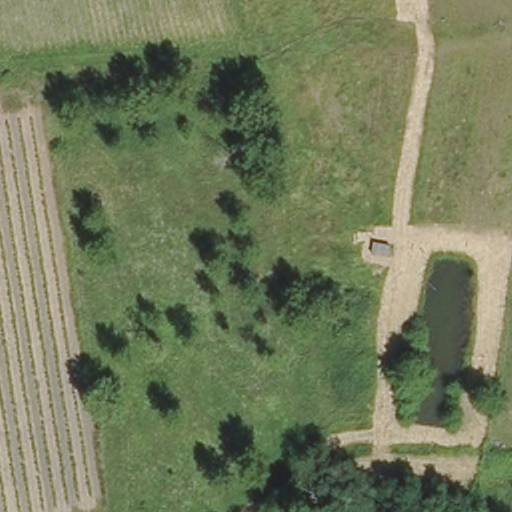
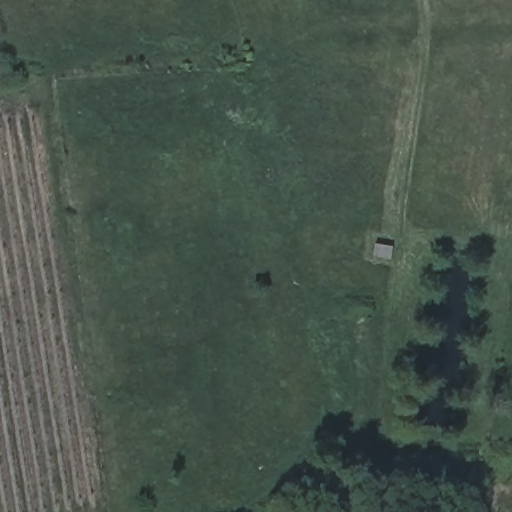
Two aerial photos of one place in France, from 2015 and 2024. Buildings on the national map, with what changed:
unchanged [(392,244),(391,258),(368,257),(371,242),(392,244)]

